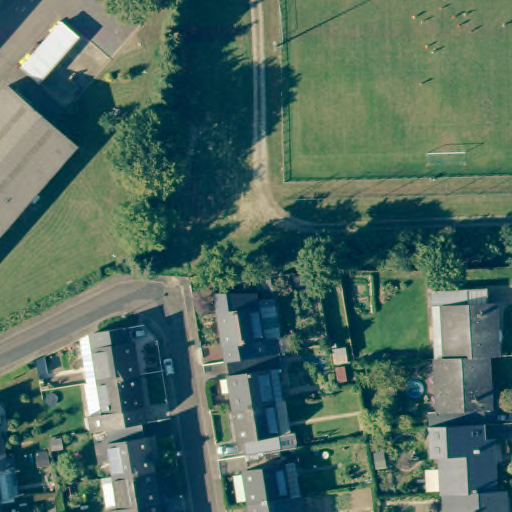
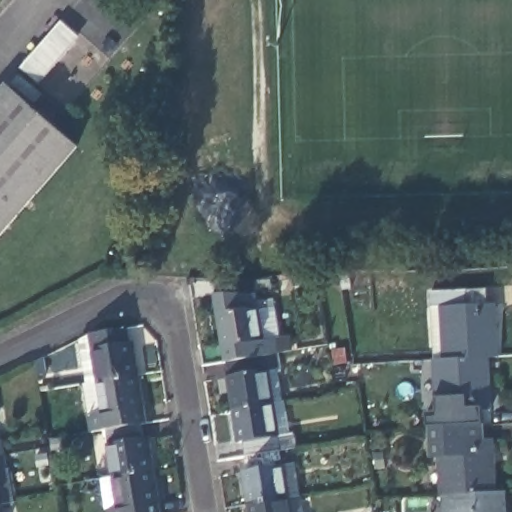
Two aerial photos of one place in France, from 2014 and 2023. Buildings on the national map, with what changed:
unchanged [(21,69),(61,22),(78,37),(38,85),(21,69)]
unchanged [(0,94),(9,84),(82,145),(0,238),(0,94)]
unchanged [(443,310),(431,310),(431,290),(487,289),(488,313),(496,313),(497,358),(482,359),(446,361),(443,310)]
unchanged [(219,310),(275,302),(282,353),(225,362),(219,310)]
unchanged [(82,347),(97,338),(131,334),(134,352),(139,351),(143,382),(89,391),(82,347)]
unchanged [(225,362),(282,353),(283,368),(280,369),(285,400),(232,408),(225,362)]
unchanged [(422,414),(435,414),(433,361),(446,361),(482,359),(485,413),(478,413),(479,427),(422,429),(422,414)]
unchanged [(89,391),(143,382),(151,428),(145,429),(110,435),(96,437),(89,391)]
unchanged [(292,433),(297,432),(298,447),(277,450),(242,456),(241,444),(237,444),(232,408),(285,400),(288,400),(292,433)]
unchanged [(423,460),(423,449),(422,429),(479,427),(480,444),(486,444),(488,494),(437,497),(435,460),(423,460)]
unchanged [(110,435),(145,429),(147,445),(151,444),(156,476),(117,482),(110,435)]
unchanged [(5,453),(0,454),(0,438),(3,438),(5,453)]
unchanged [(280,463),(290,462),(294,495),(245,502),(241,473),(245,473),(242,456),(277,450),(280,463)]
unchanged [(7,469),(11,469),(15,500),(0,502),(0,454),(5,453),(7,469)]
unchanged [(156,476),(162,512),(121,512),(117,482),(156,476)]
unchanged [(438,512),(437,497),(488,494),(501,493),(501,512),(438,512)]
unchanged [(294,495),(297,494),(299,512),(246,512),(245,502),(294,495)]

